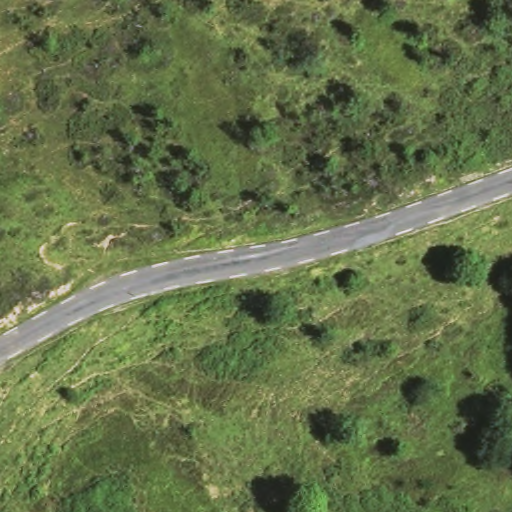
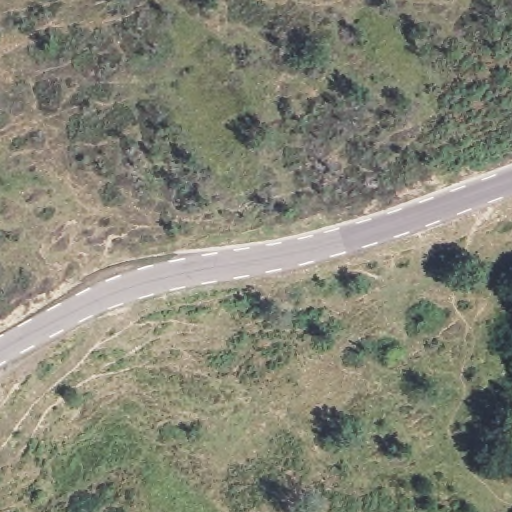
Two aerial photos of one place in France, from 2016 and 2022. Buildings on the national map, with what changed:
[]

